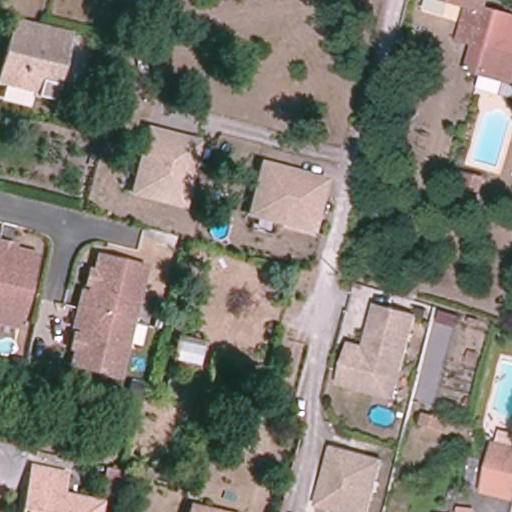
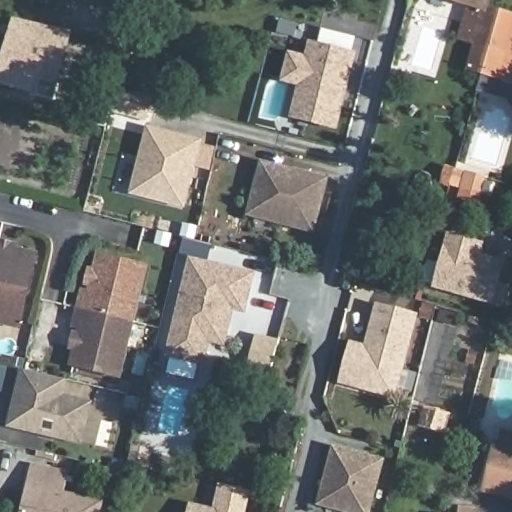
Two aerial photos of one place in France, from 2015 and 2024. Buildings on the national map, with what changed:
unchanged [(464,68),(471,43),(457,39),(467,5),(450,0),(481,0),(479,7),(498,12),(480,72),(464,68)]
unchanged [(480,72),(498,12),(512,17),(512,80),(512,82),(480,72)]
unchanged [(56,99),(39,95),(40,92),(1,82),(13,36),(17,19),(42,24),(69,30),(64,49),(55,82),(60,84),(56,99)]
new [(297,86),(281,81),(288,50),(305,55),(308,40),(318,42),(322,27),(357,37),(334,130),(289,118),(297,86)]
unchanged [(110,115),(107,127),(86,122),(89,110),(110,115)]
unchanged [(186,209),(129,196),(146,126),(204,139),(186,209)]
unchanged [(316,233),(244,215),(259,159),(330,177),(316,233)]
new [(433,287),(448,232),(485,242),(483,252),(506,258),(494,304),(433,287)]
new [(175,249),(158,245),(160,234),(177,238),(175,249)]
unchanged [(0,317),(0,238),(11,241),(10,244),(15,245),(33,250),(15,321),(0,317)]
unchanged [(143,267),(130,322),(83,310),(76,308),(80,292),(88,293),(90,285),(85,283),(88,270),(93,272),(97,256),(143,267)]
new [(225,343),(210,340),(204,362),(171,354),(194,260),(254,275),(246,310),(234,307),(230,323),(225,343)]
unchanged [(395,398),(343,384),(352,340),(366,345),(377,303),(418,313),(395,398)]
unchanged [(130,322),(116,377),(70,365),(74,349),(69,348),(72,335),(77,336),(79,327),(72,326),(76,308),(83,310),(130,322)]
new [(256,337),(279,343),(270,372),(248,366),(256,337)]
new [(7,426),(20,368),(69,379),(65,395),(93,401),(83,444),(7,426)]
unchanged [(499,437),(512,441),(512,499),(483,491),(499,437)]
unchanged [(342,512),(317,505),(335,443),(385,458),(370,512),(342,512)]
unchanged [(146,492),(123,486),(133,446),(156,451),(146,492)]
unchanged [(62,473),(58,494),(97,502),(94,512),(19,512),(29,466),(62,473)]
unchanged [(213,512),(192,512),(193,507),(200,509),(213,512)]

